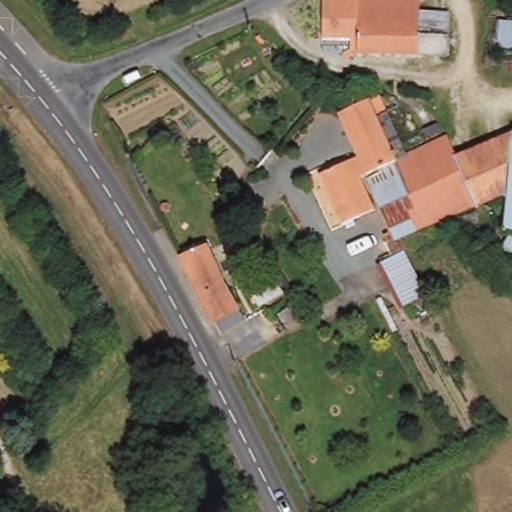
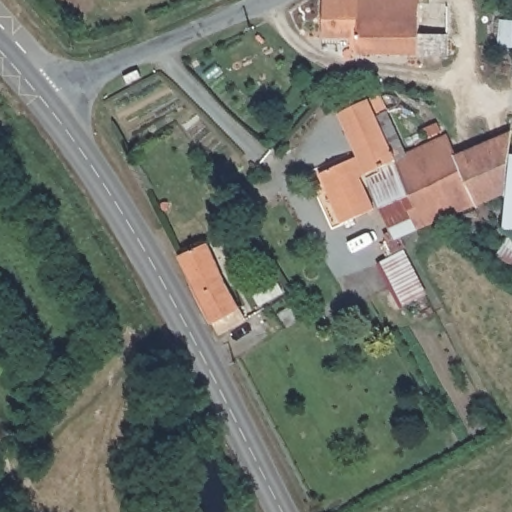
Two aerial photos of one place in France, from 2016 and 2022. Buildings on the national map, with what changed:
unchanged [(452,51),(362,50),(362,39),(344,38),(327,37),(328,0),(425,0),(424,10),(454,11),(453,36),(452,51)]
unchanged [(347,116),(374,103),(386,97),(392,113),(413,156),(411,156),(402,160),(372,178),(367,180),(380,211),(350,225),(328,176),(367,157),(347,116)]
unchanged [(512,196),(487,207),(463,157),(512,136),(512,196)]
unchanged [(453,137),(463,157),(487,207),(425,233),(416,213),(418,212),(424,209),(402,160),(411,156),(413,156),(453,137)]
unchanged [(402,160),(424,209),(418,212),(416,213),(425,233),(421,235),(406,241),(410,250),(398,256),(391,242),(400,237),(372,178),(402,160)]
unchanged [(512,202),(512,234),(509,234),(512,202)]
unchanged [(220,338),(206,308),(208,307),(183,257),(207,244),(231,295),(247,323),(220,338)]

